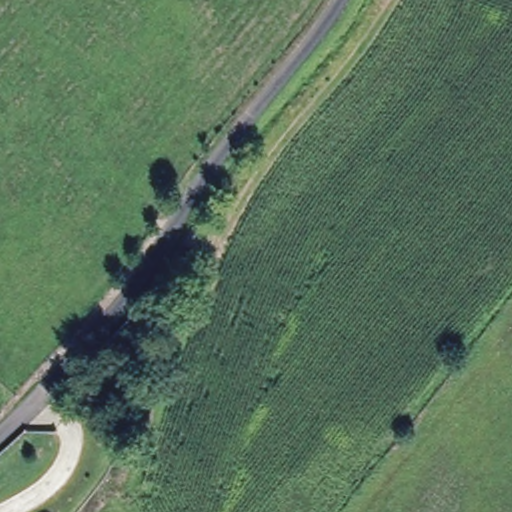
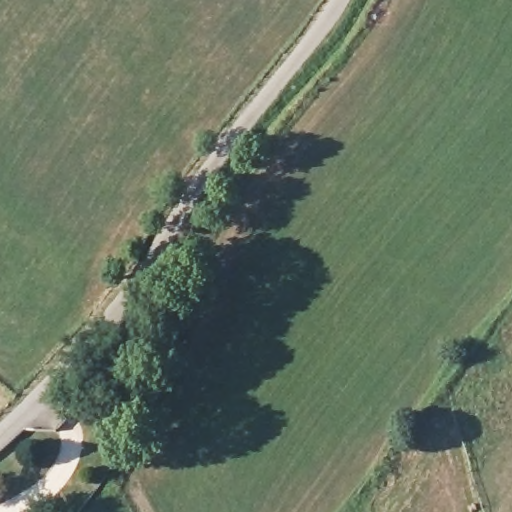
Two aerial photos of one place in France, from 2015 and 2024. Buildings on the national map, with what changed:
[]

